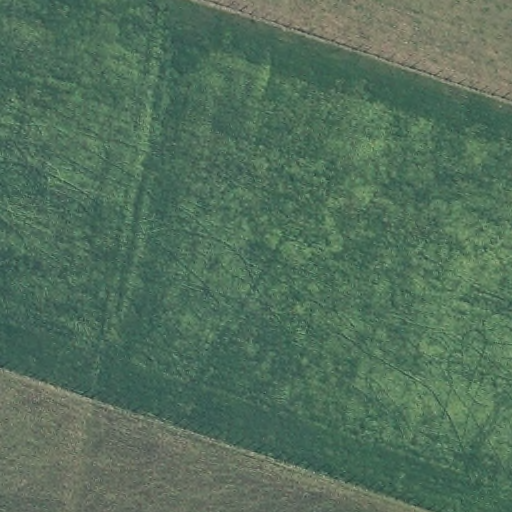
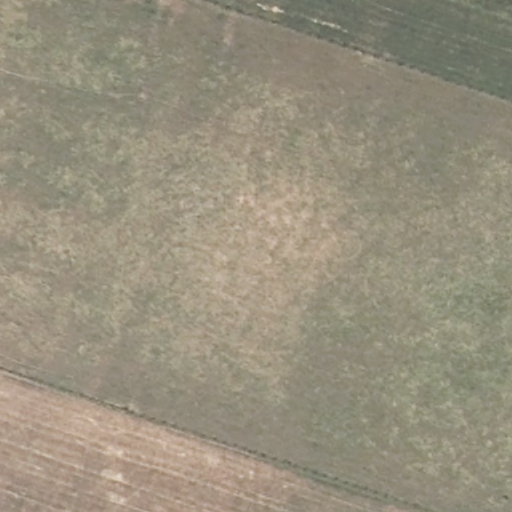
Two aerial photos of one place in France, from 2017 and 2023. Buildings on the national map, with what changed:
[]

